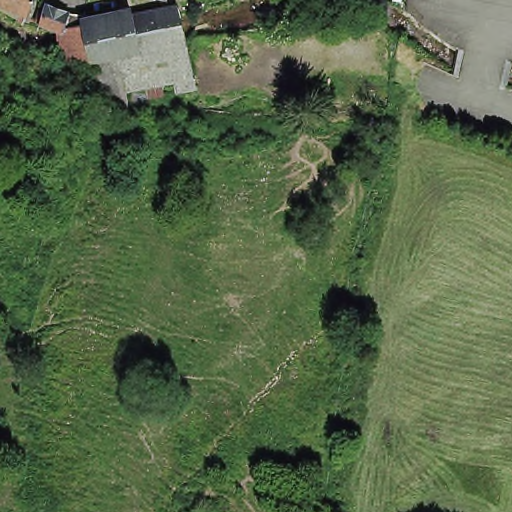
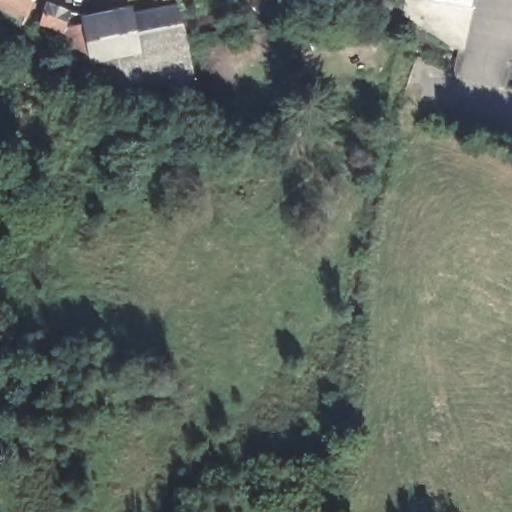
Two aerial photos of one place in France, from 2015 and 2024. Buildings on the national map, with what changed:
unchanged [(0,2),(0,0),(34,0),(28,14),(25,21),(19,18),(22,11),(0,2)]
unchanged [(58,37),(58,36),(39,30),(48,11),(72,20),(68,33),(83,30),(178,11),(181,22),(186,46),(187,50),(117,64),(88,69),(88,67),(87,66),(60,69),(59,66),(58,37)]
unchanged [(187,50),(198,96),(178,101),(174,89),(125,99),(117,64),(187,50)]
unchanged [(129,120),(99,126),(88,69),(117,64),(125,99),(129,120)]

